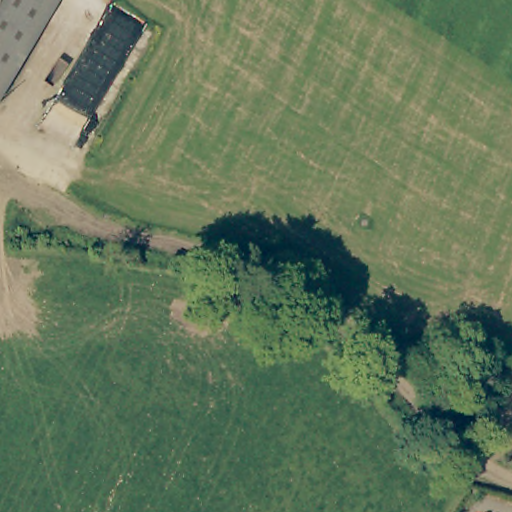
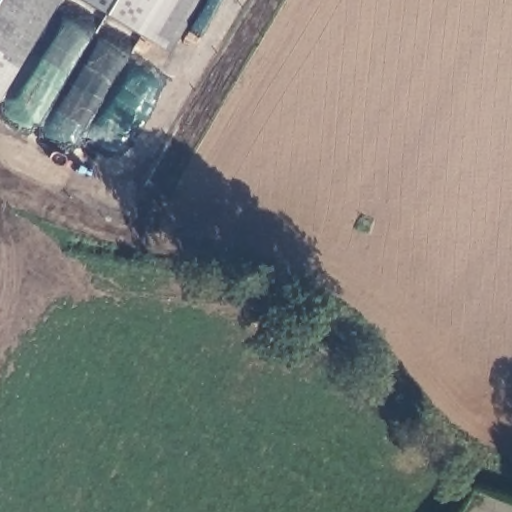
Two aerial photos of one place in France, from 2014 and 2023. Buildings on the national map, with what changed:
unchanged [(0,91),(0,0),(55,0),(0,91)]
new [(152,44),(82,0),(178,0),(152,44)]

